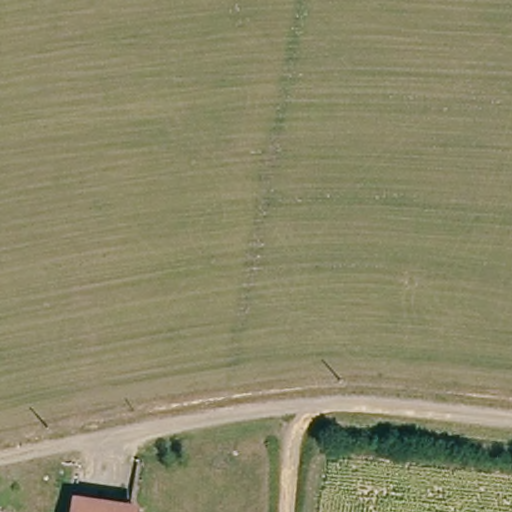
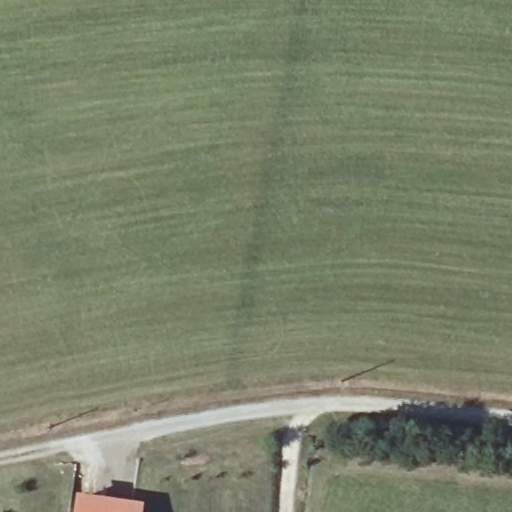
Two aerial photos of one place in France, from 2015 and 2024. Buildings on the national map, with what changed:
unchanged [(122,507),(136,508),(136,512),(74,512),(74,502),(122,507)]

